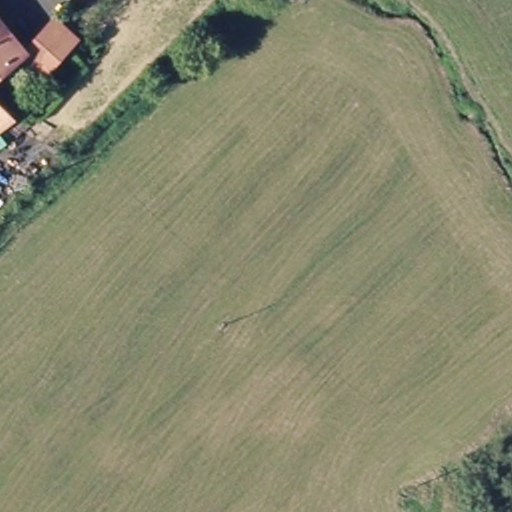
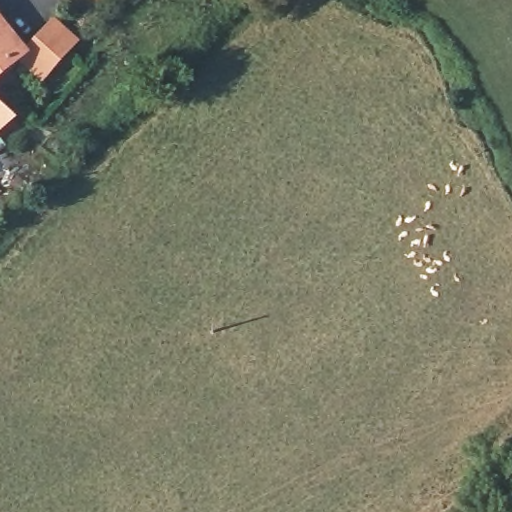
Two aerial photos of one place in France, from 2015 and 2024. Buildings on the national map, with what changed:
unchanged [(7,37),(5,39),(20,59),(0,75),(0,28),(7,37)]
unchanged [(55,30),(75,49),(39,85),(34,80),(20,66),(35,50),(55,30)]
unchanged [(22,132),(3,147),(0,150),(0,119),(1,120),(8,114),(22,132)]

